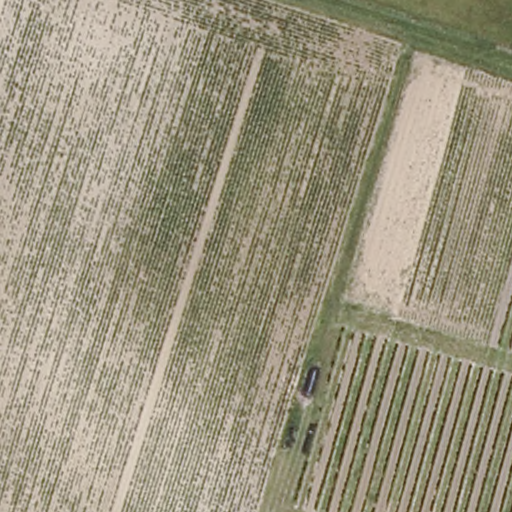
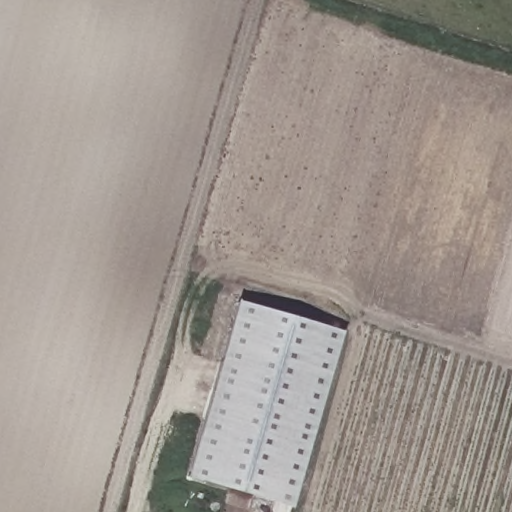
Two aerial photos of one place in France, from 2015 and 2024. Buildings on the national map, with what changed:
new [(328,332),(337,335),(336,339),(342,341),(293,508),(189,478),(240,302),(329,327),(328,332)]

